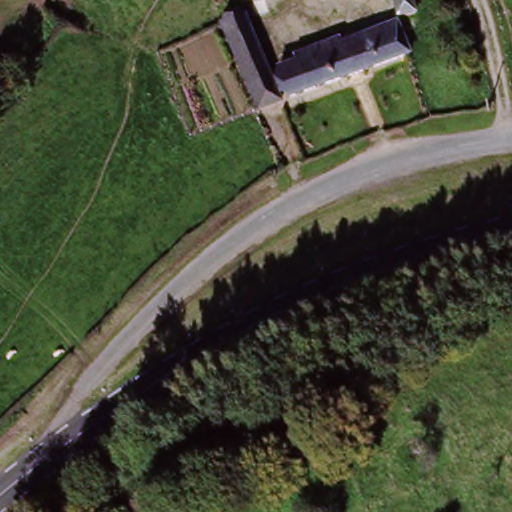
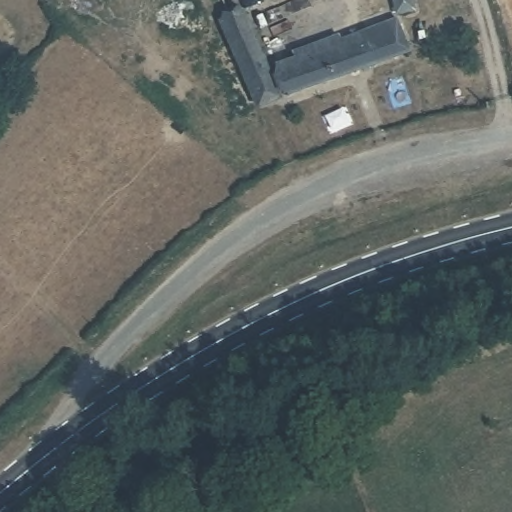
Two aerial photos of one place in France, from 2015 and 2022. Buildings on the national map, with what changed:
unchanged [(397,27),(391,0),(409,0),(414,24),(397,27)]
unchanged [(241,20),(275,104),(253,111),(221,27),(241,20)]
unchanged [(278,78),(299,70),(296,57),(349,37),(355,47),(399,34),(408,58),(284,100),(278,78)]

